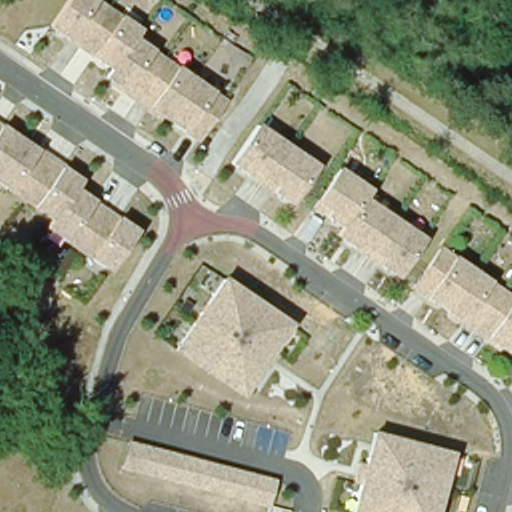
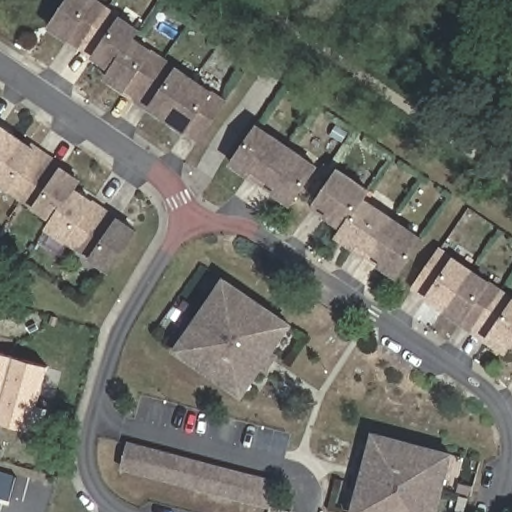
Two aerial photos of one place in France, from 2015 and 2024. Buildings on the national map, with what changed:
unchanged [(133,36),(225,100),(197,139),(107,76),(112,69),(51,26),(68,0),(96,0),(139,29),(133,36)]
unchanged [(317,167),(292,203),(230,159),(256,123),(317,167)]
unchanged [(75,189),(137,231),(110,270),(47,227),(53,220),(0,183),(0,125),(81,180),(75,189)]
unchanged [(369,191),(363,199),(423,239),(397,276),(338,235),(343,228),(313,207),(339,170),(369,191)]
unchanged [(512,298),(512,342),(506,350),(414,287),(441,249),(512,298)]
unchanged [(242,395),(241,393),(237,390),(185,355),(177,350),(225,279),(291,324),(272,352),(277,355),(267,370),(262,366),(257,374),(255,376),(242,395)]
new [(32,432),(0,422),(0,352),(51,366),(32,432)]
unchanged [(452,453),(436,512),(354,512),(375,433),(452,453)]
unchanged [(266,508),(120,471),(128,442),(277,481),(273,507),(291,512),(265,512),(266,508)]

